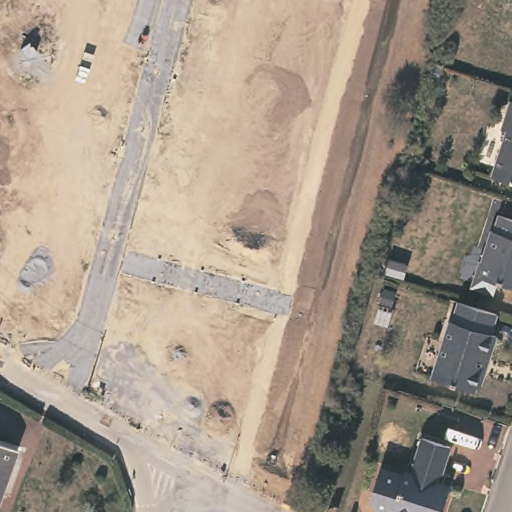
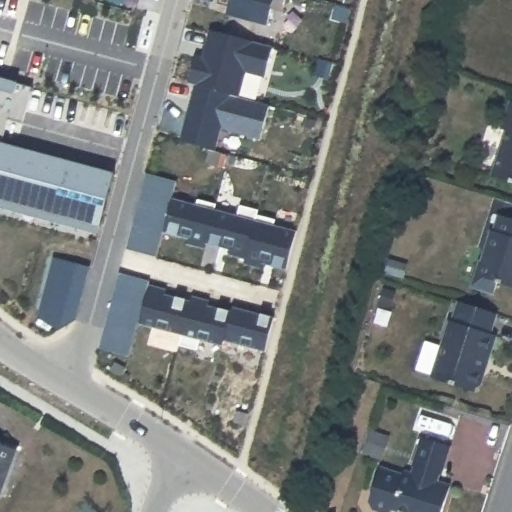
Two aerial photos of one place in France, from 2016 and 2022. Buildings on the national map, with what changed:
new [(223,0),(289,0),(285,17),(275,14),(270,30),(230,19),(231,12),(220,9),(223,0)]
new [(216,31),(280,48),(271,78),(252,73),(246,99),(195,85),(202,57),(209,59),(216,31)]
new [(15,83),(31,88),(20,120),(5,116),(0,130),(0,79),(15,83)]
unchanged [(261,137),(222,129),(216,149),(181,140),(195,85),(246,99),(267,105),(261,137)]
unchanged [(512,124),(512,131),(510,130),(512,124)]
unchanged [(512,139),(512,180),(500,176),(512,139)]
new [(99,235),(0,207),(0,141),(115,174),(99,235)]
new [(161,257),(127,248),(146,174),(181,184),(176,204),(166,238),(161,257)]
new [(176,204),(200,210),(201,205),(219,210),(217,215),(209,249),(207,254),(190,250),(192,245),(166,238),(176,204)]
new [(217,215),(240,221),(242,211),(261,216),(260,221),(248,265),(231,260),(232,255),(209,249),(217,215)]
unchanged [(512,280),(506,278),(502,290),(479,282),(483,269),(485,270),(499,226),(501,226),(506,211),(512,212),(512,280)]
new [(248,265),(260,221),(278,226),(277,231),(300,237),(290,276),(265,270),(264,274),(247,270),(248,265)]
new [(90,268),(76,320),(62,328),(37,317),(52,259),(90,268)]
new [(130,357),(98,347),(119,274),(146,280),(149,290),(138,325),(130,357)]
unchanged [(266,351),(224,342),(222,346),(138,325),(149,290),(232,312),(234,307),(274,318),(266,351)]
unchanged [(501,305),(495,326),(501,328),(485,378),(480,379),(478,382),(436,368),(455,313),(457,313),(464,293),(501,305)]
unchanged [(368,503),(380,469),(401,476),(403,473),(412,476),(415,466),(412,465),(421,437),(450,446),(441,474),(437,473),(435,482),(450,487),(442,512),(395,512),(375,512),(373,512),(368,503)]
unchanged [(20,446),(0,504),(0,439),(20,446)]

